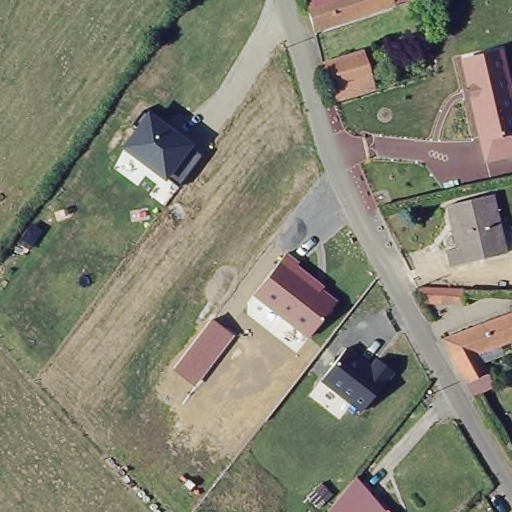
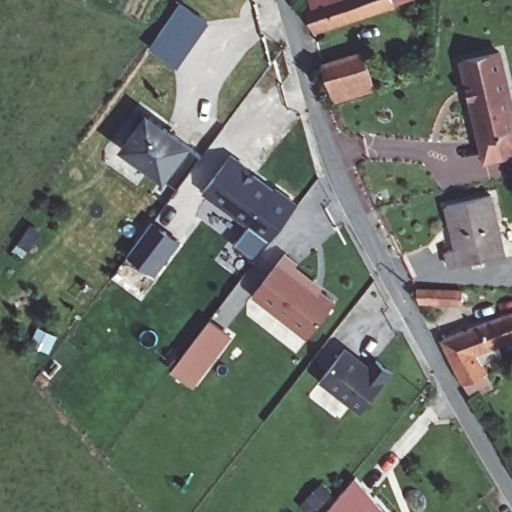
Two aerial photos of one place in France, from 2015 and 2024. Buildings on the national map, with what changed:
unchanged [(311,0),(404,0),(318,25),(311,0)]
new [(151,46),(160,34),(181,2),(208,22),(186,52),(178,65),(151,46)]
unchanged [(357,45),(371,87),(331,101),(317,57),(357,45)]
unchanged [(501,49),(512,94),(512,157),(484,163),(459,60),(501,49)]
unchanged [(178,186),(167,178),(165,182),(120,147),(136,127),(133,125),(142,112),(147,113),(192,146),(191,148),(201,156),(178,186)]
new [(207,190),(235,154),(251,166),(250,169),(279,190),(253,224),(207,190)]
unchanged [(458,243),(451,214),(448,215),(445,200),(490,190),(503,249),(448,263),(444,247),(458,243)]
new [(180,241),(156,273),(130,254),(154,222),(180,241)]
unchanged [(297,266),(325,287),(322,290),(335,301),(307,338),(252,296),(286,252),(300,263),(297,266)]
unchanged [(428,282),(460,283),(459,301),(416,298),(414,298),(411,281),(428,282)]
unchanged [(512,343),(505,346),(497,348),(498,352),(490,356),(488,352),(479,357),(492,378),(496,386),(472,400),(436,337),(512,310),(512,343)]
unchanged [(193,387),(171,371),(211,319),(233,337),(193,387)]
unchanged [(369,367),(375,358),(394,375),(361,413),(320,382),(346,348),(369,367)]
unchanged [(353,471),(388,512),(323,512),(321,511),(353,471)]

